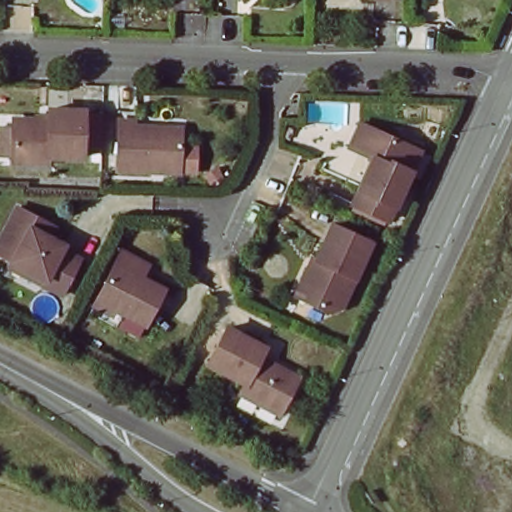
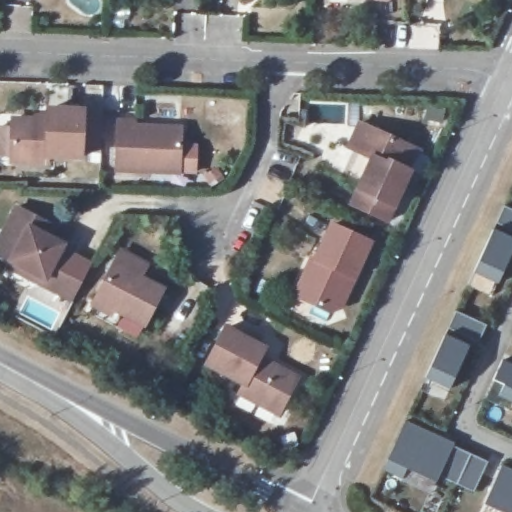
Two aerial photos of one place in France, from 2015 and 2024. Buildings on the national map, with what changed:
unchanged [(12,124),(12,119),(47,120),(47,109),(82,110),(102,111),(100,147),(81,146),(81,158),(47,156),(47,163),(10,162),(11,156),(0,156),(0,124),(12,124)]
unchanged [(115,170),(117,120),(134,120),(134,125),(181,127),(179,172),(115,170)]
unchanged [(419,150),(408,174),(388,220),(351,204),(372,157),(363,153),(349,147),(359,123),(373,130),(411,147),(419,150)]
new [(512,208),(512,229),(496,222),(503,204),(512,208)]
unchanged [(72,300),(62,294),(35,280),(9,266),(12,261),(0,256),(0,240),(17,207),(35,216),(52,225),(47,236),(63,245),(60,249),(79,258),(91,264),(72,300)]
unchanged [(311,259),(315,261),(331,224),(370,242),(340,307),(330,311),(314,304),(295,295),(311,259)]
new [(512,238),(512,250),(497,283),(473,272),(492,229),(512,238)]
unchanged [(110,322),(112,318),(92,308),(114,264),(119,254),(143,266),(138,276),(163,288),(144,324),(138,336),(110,322)]
new [(455,310),(481,322),(473,339),(447,327),(455,310)]
unchanged [(240,394),(243,388),(245,384),(207,364),(226,327),(264,347),(258,357),(297,377),(281,408),(278,414),(240,394)]
new [(445,334),(469,345),(449,388),(424,377),(445,334)]
new [(512,365),(512,402),(498,396),(503,384),(492,380),(501,360),(512,365)]
new [(406,420),(454,442),(452,446),(487,462),(472,492),(439,475),(436,482),(406,468),(402,478),(384,469),(406,420)]
new [(512,469),(512,512),(502,512),(483,503),(502,464),(512,469)]

